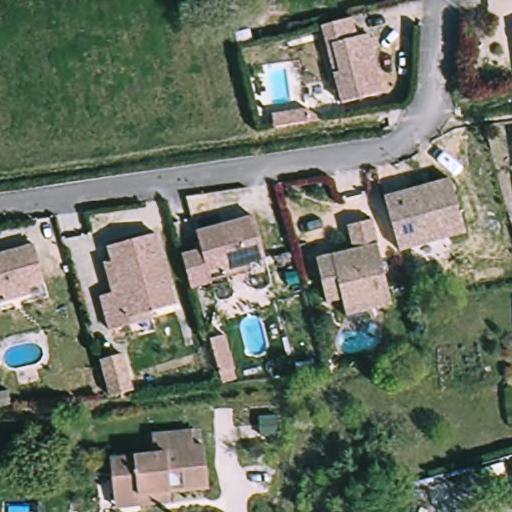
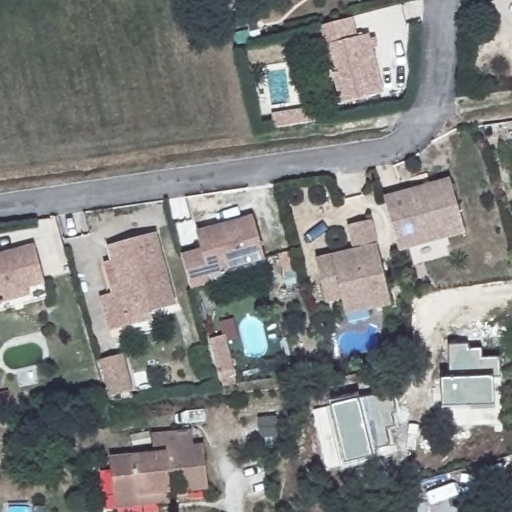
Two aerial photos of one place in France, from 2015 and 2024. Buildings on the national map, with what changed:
unchanged [(356,41),(369,39),(384,100),(343,111),(322,29),(328,27),(351,21),(356,41)]
unchanged [(308,109),(309,121),(275,126),(273,115),(308,109)]
unchanged [(454,181),(470,233),(404,253),(391,210),(389,201),(454,181)]
unchanged [(214,286),(215,289),(194,295),(189,277),(186,262),(184,256),(203,251),(198,234),(257,218),(268,261),(251,266),(253,275),(214,286)]
unchanged [(354,317),(351,305),(349,300),(333,304),(321,261),(359,250),(352,226),(375,219),(396,292),(399,304),(354,317)]
unchanged [(157,233),(176,306),(129,318),(131,325),(110,331),(101,296),(120,291),(108,246),(157,233)]
unchanged [(3,296),(0,297),(0,255),(37,246),(47,285),(30,289),(32,296),(5,303),(3,296)]
unchanged [(226,335),(236,371),(221,375),(212,339),(226,335)]
new [(494,410),(470,411),(469,407),(442,408),(441,380),(449,379),(448,347),(467,346),(468,352),(481,351),(482,360),(499,359),(499,377),(493,379),(494,410)]
unchanged [(123,364),(133,401),(121,402),(113,403),(103,369),(123,364)]
new [(374,449),(376,456),(372,458),(345,463),(331,408),(356,400),(390,392),(396,413),(391,414),(394,427),(386,430),(389,445),(374,449)]
unchanged [(276,416),(276,435),(259,437),(258,417),(276,416)]
unchanged [(117,498),(113,457),(156,453),(153,434),(192,430),(194,446),(204,445),(208,489),(176,492),(178,504),(164,505),(143,507),(118,510),(117,498)]

